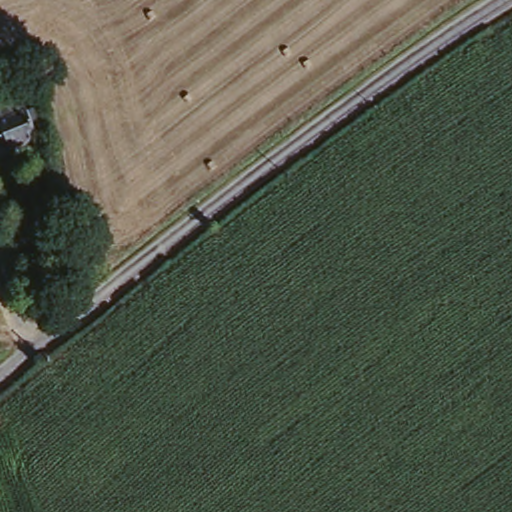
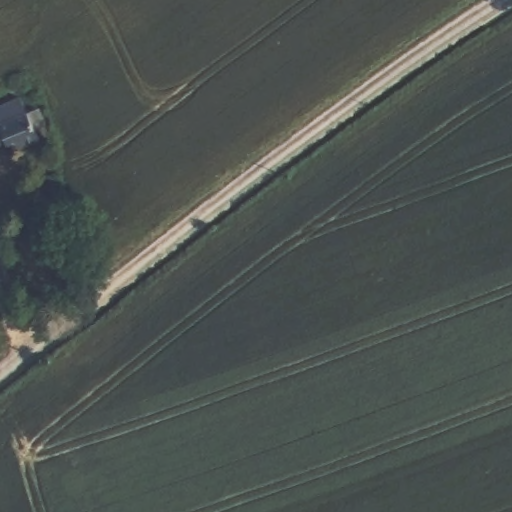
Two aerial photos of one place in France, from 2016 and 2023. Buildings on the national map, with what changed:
unchanged [(42,132),(0,151),(0,120),(29,107),(42,132)]

